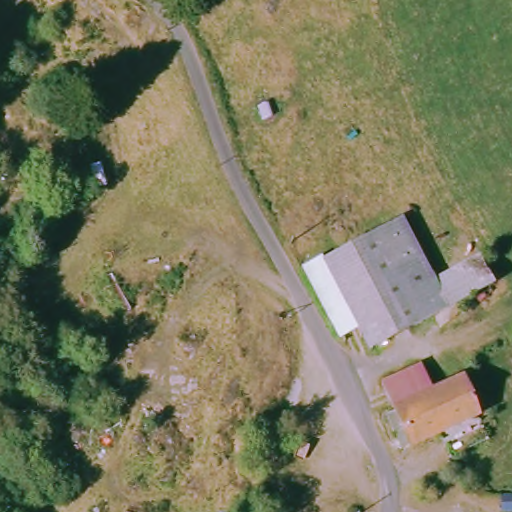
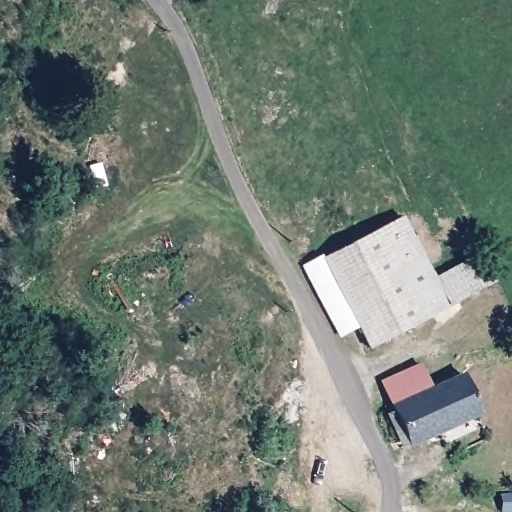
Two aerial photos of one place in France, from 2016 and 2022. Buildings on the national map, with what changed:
unchanged [(361,351),(355,339),(340,307),(315,256),(397,217),(427,282),(471,259),(482,287),(393,334),(361,351)]
unchanged [(298,258),(312,250),(315,256),(340,307),(324,315),(298,258)]
unchanged [(410,449),(377,385),(415,366),(430,396),(464,381),(479,412),(421,443),(410,449)]

